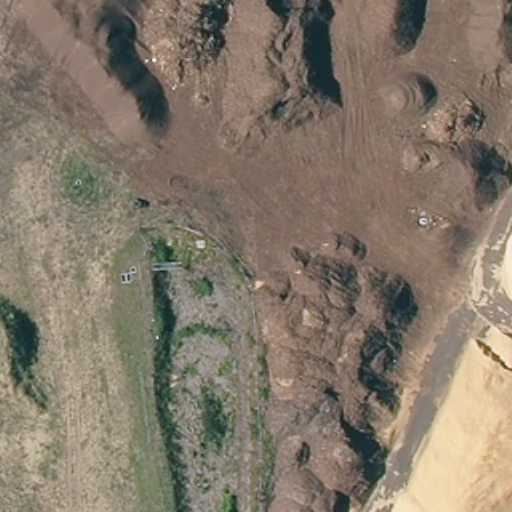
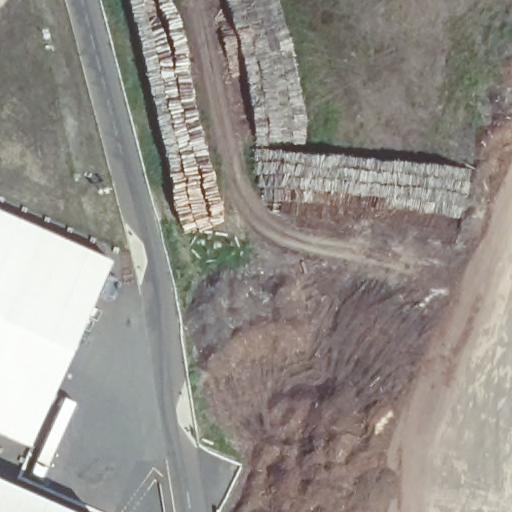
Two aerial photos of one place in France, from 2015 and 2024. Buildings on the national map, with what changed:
new [(79,334),(29,451),(23,449),(0,438),(0,210),(113,261),(79,334)]
new [(0,485),(61,512),(0,512),(0,485)]

